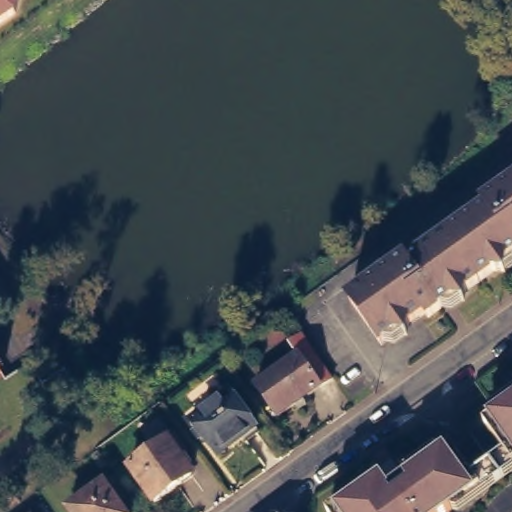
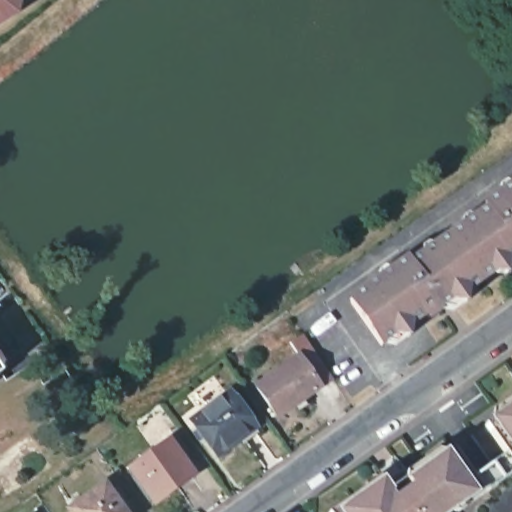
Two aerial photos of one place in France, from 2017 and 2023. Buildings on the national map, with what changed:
unchanged [(0,29),(0,0),(21,0),(17,18),(0,29)]
unchanged [(425,310),(382,340),(351,297),(408,257),(410,259),(487,204),(485,202),(512,184),(512,254),(428,313),(425,310)]
unchanged [(320,387),(309,395),(302,400),(295,405),(277,417),(255,386),(299,356),(320,387)]
unchanged [(0,370),(0,367),(2,369),(0,370)]
unchanged [(250,438),(245,433),(222,451),(197,417),(235,387),(264,427),(250,438)]
unchanged [(490,420),(512,405),(512,451),(490,420)]
unchanged [(197,471),(160,498),(136,463),(173,436),(185,453),(191,461),(197,471)]
unchanged [(472,495),(469,491),(455,500),(459,505),(449,512),(335,512),(333,509),(370,483),(374,488),(388,478),(393,485),(415,470),(417,473),(457,444),(487,485),(472,495)]
unchanged [(105,459),(85,474),(77,464),(98,449),(105,459)]
unchanged [(123,512),(68,512),(63,505),(100,479),(123,512)]

